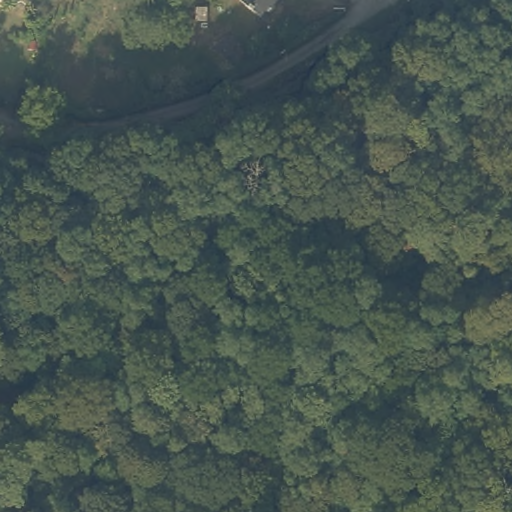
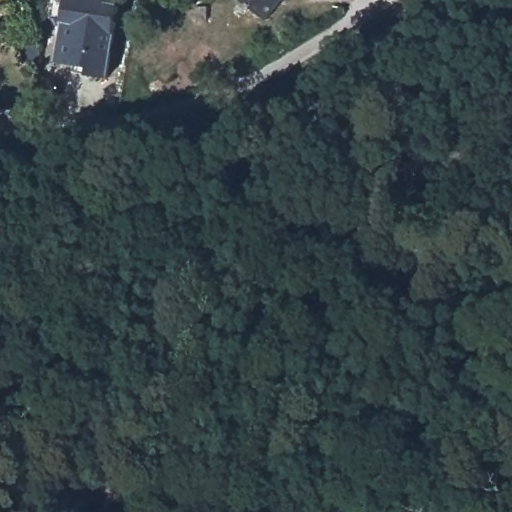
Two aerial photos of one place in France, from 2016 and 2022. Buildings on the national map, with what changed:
new [(88,67),(57,63),(61,21),(65,0),(106,0),(119,3),(110,77),(87,74),(88,67)]
unchanged [(243,0),(269,0),(259,13),(243,0)]
unchanged [(209,10),(207,23),(196,21),(197,9),(209,10)]

